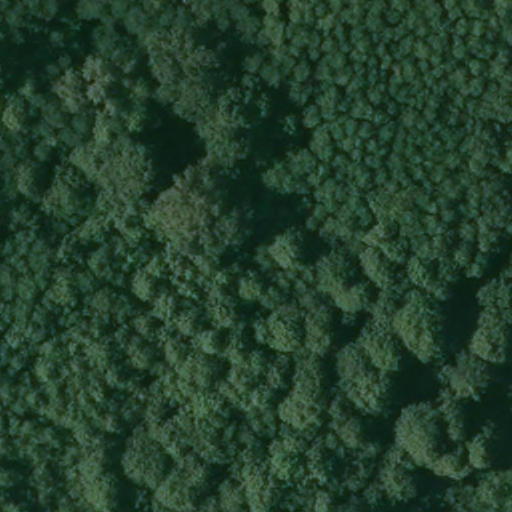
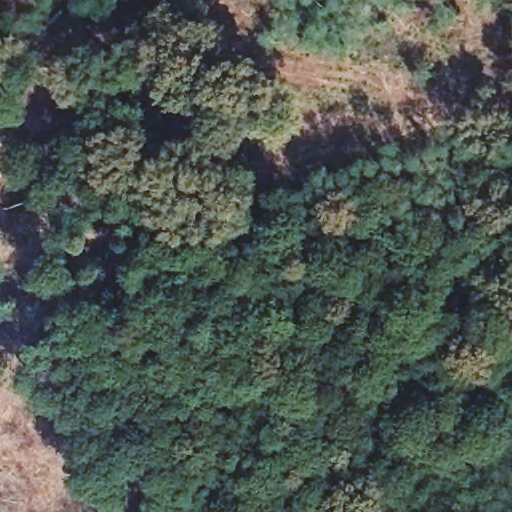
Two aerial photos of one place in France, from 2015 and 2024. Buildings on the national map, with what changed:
[]

